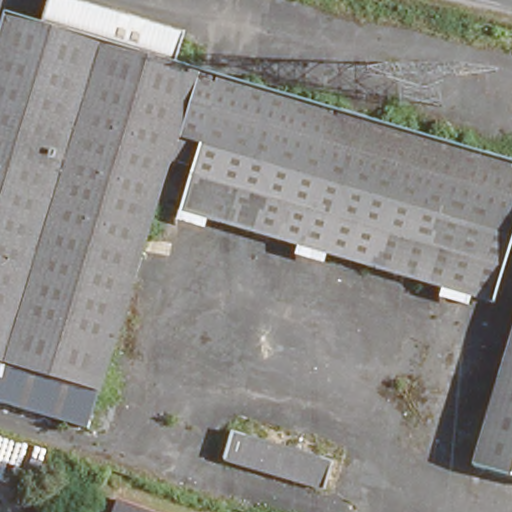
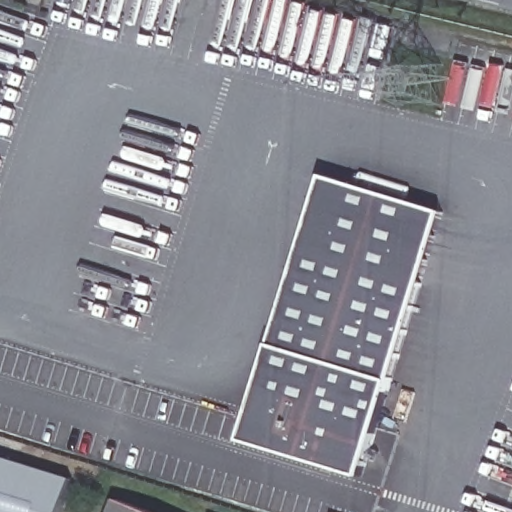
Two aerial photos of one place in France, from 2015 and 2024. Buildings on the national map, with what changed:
demolished [(179,138),(171,164),(147,242),(92,423),(27,403),(0,395),(0,24),(3,14),(39,25),(46,0),(48,0),(156,32),(179,38),(170,64),(267,93),(305,105),(290,145),(281,170),(179,138)]
demolished [(454,224),(281,170),(290,145),(305,105),(480,158),(454,224)]
demolished [(181,218),(196,171),(171,164),(179,138),(281,170),(254,241),(181,218)]
demolished [(478,229),(468,257),(456,253),(463,227),(454,224),(480,158),(502,164),(478,229)]
demolished [(478,229),(502,164),(512,167),(512,271),(468,257),(478,229)]
demolished [(323,263),(254,241),(281,170),(454,224),(428,294),(323,263)]
new [(274,345),(325,176),(441,213),(390,382),(362,476),(244,440),(274,345)]
demolished [(428,294),(454,224),(463,227),(456,253),(468,257),(451,301),(428,294)]
demolished [(451,301),(468,257),(512,271),(497,315),(451,301)]
demolished [(510,343),(512,336),(512,475),(472,463),(510,343)]
demolished [(234,438),(335,470),(329,486),(277,471),(227,455),(234,438)]
demolished [(329,486),(325,499),(222,469),(227,455),(277,471),(329,486)]
new [(64,484),(54,512),(0,512),(0,462),(64,484)]
unchanged [(108,512),(114,493),(161,512),(108,512)]

